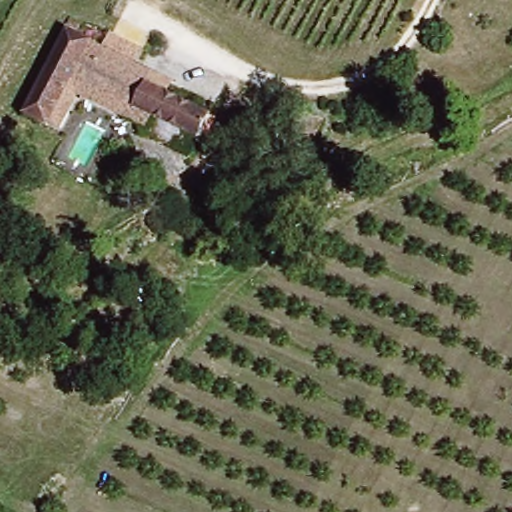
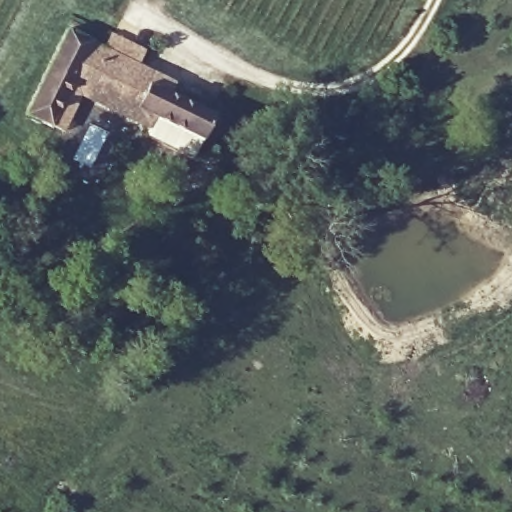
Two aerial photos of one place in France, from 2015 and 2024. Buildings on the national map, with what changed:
unchanged [(194,140),(164,122),(73,75),(47,121),(47,124),(18,107),(71,9),(180,69),(175,77),(216,98),(205,120),(194,140)]
unchanged [(73,75),(164,122),(140,125),(80,92),(61,129),(47,121),(73,75)]

